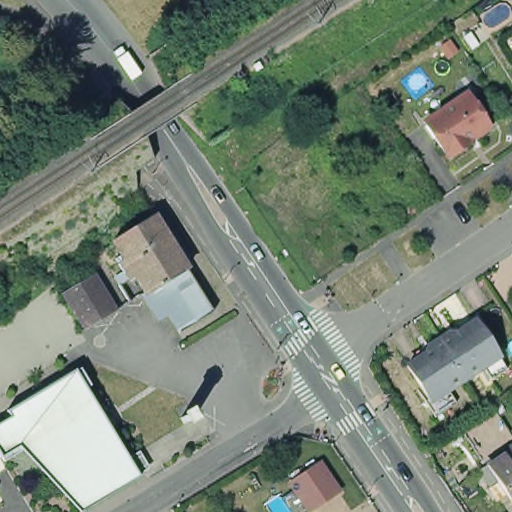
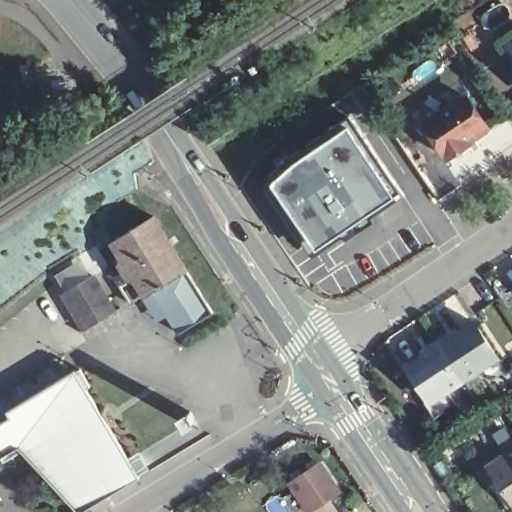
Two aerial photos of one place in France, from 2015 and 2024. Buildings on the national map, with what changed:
unchanged [(512,63),(509,60),(512,58),(512,63)]
unchanged [(439,157),(411,122),(464,90),(483,120),(439,157)]
new [(402,196),(308,259),(261,181),(271,167),(293,149),(326,126),(346,112),(402,196)]
unchanged [(118,268),(125,265),(113,246),(153,220),(186,272),(147,300),(133,276),(126,280),(118,268)]
unchanged [(74,277),(86,270),(110,307),(99,314),(79,326),(55,289),(74,277)]
unchanged [(147,300),(186,272),(213,315),(173,340),(147,300)]
unchanged [(473,312),(500,358),(427,400),(402,361),(473,312)]
unchanged [(9,417),(6,413),(74,370),(77,373),(81,370),(93,388),(90,389),(88,390),(143,477),(86,512),(76,492),(69,496),(51,469),(47,472),(29,442),(21,446),(25,453),(6,465),(3,457),(0,459),(0,423),(9,417)]
unchanged [(512,431),(512,437),(509,433),(512,431)]
unchanged [(482,460),(494,451),(490,445),(509,433),(512,437),(512,503),(482,460)]
unchanged [(321,456),(342,493),(312,512),(303,512),(286,480),(321,456)]

